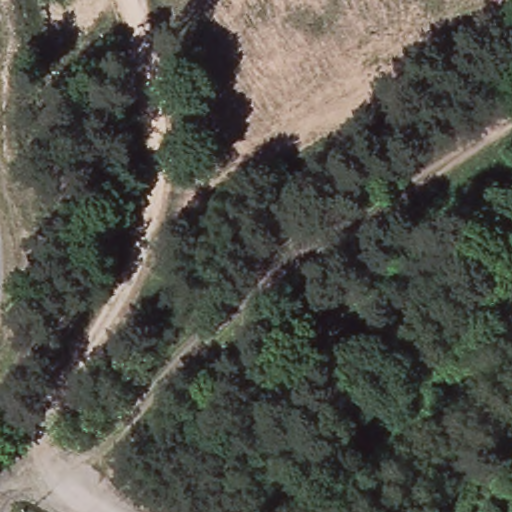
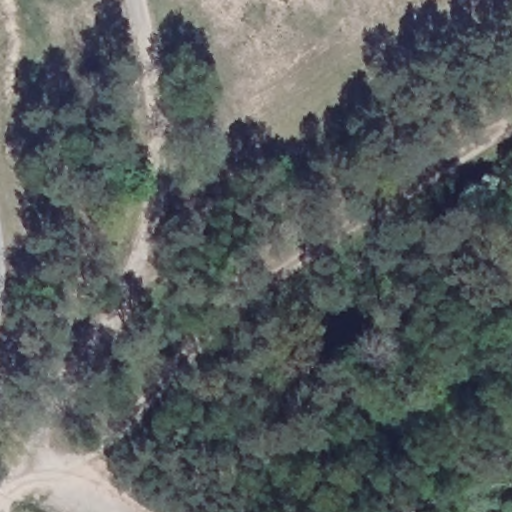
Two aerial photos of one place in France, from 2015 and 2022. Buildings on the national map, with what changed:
[]

